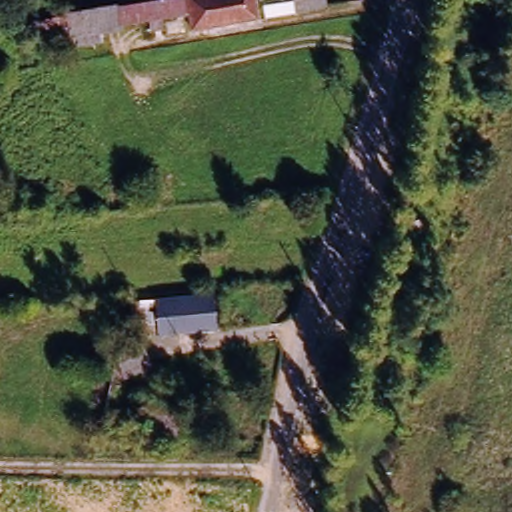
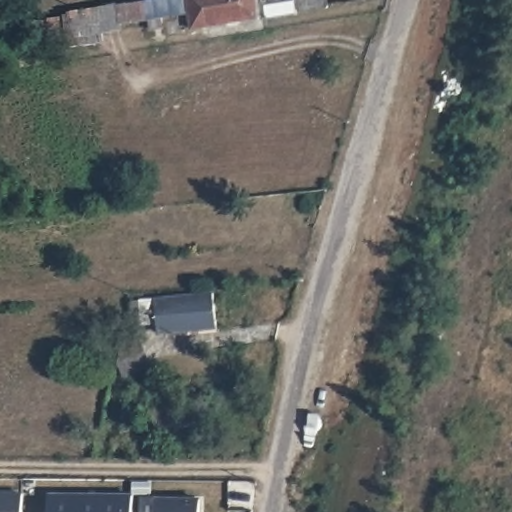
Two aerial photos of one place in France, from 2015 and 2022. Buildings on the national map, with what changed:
unchanged [(151,0),(183,0),(185,14),(128,23),(125,4),(151,0)]
unchanged [(259,18),(208,26),(205,0),(256,0),(259,18)]
unchanged [(128,23),(129,29),(102,33),(104,45),(65,51),(60,16),(125,4),(128,23)]
unchanged [(212,295),(215,331),(160,336),(157,300),(212,295)]
unchanged [(144,413),(170,413),(177,444),(147,447),(144,413)]
new [(20,487),(19,512),(0,512),(0,487),(20,487)]
new [(132,493),(132,512),(49,512),(49,491),(132,493)]
new [(196,512),(154,512),(154,495),(197,495),(196,512)]

